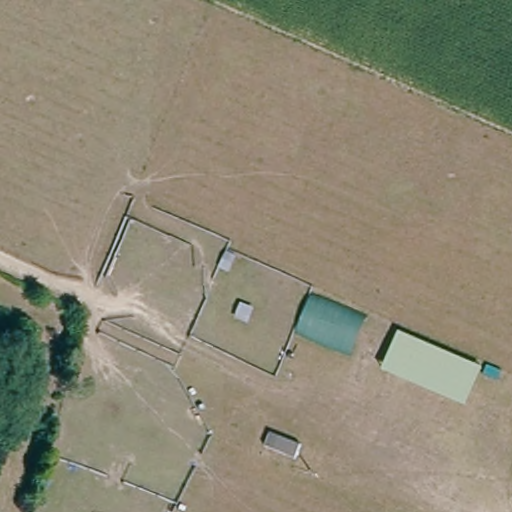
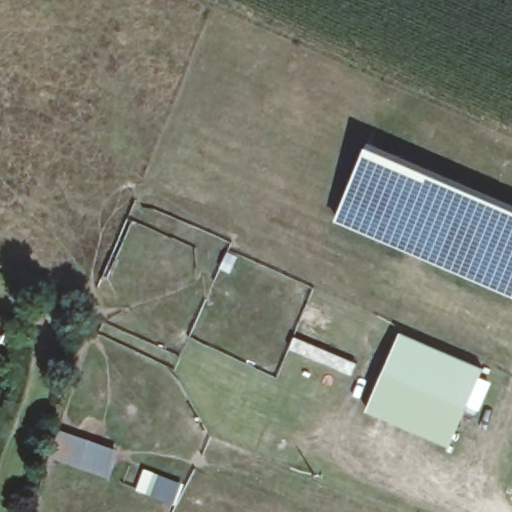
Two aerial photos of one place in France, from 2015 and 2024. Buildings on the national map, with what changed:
new [(512,203),(512,297),(334,220),(368,141),(512,203)]
demolished [(296,335),(312,293),(367,316),(353,354),(296,335)]
new [(483,368),(450,447),(366,412),(401,333),(483,368)]
new [(118,450),(109,477),(59,461),(68,433),(118,450)]

